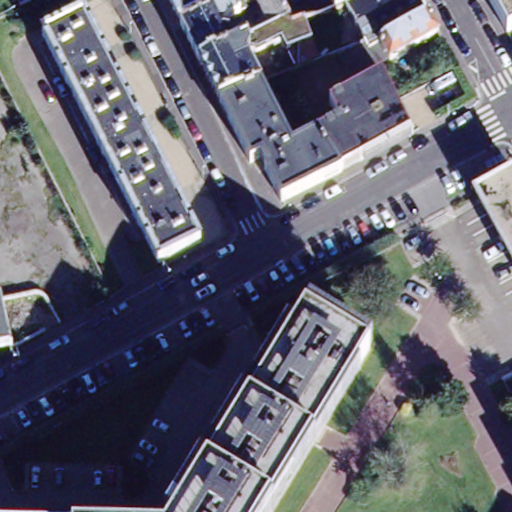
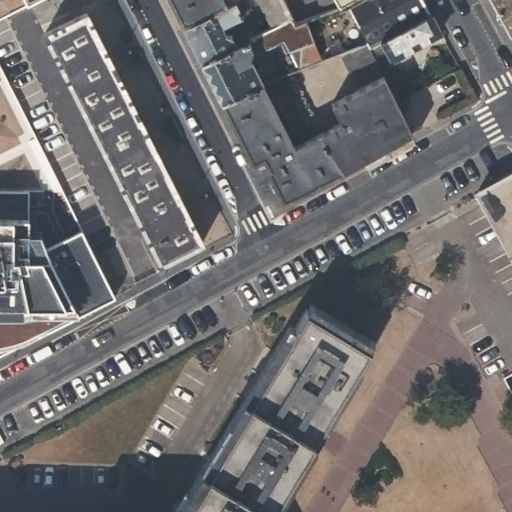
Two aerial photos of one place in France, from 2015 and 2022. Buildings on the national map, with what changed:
new [(8,3),(2,0),(44,0),(35,4),(8,3)]
demolished [(27,10),(22,0),(47,0),(27,10)]
unchanged [(229,1),(225,3),(187,22),(176,0),(229,0),(229,1)]
unchanged [(225,100),(205,59),(187,22),(225,3),(229,1),(229,0),(247,0),(249,5),(244,8),(245,11),(224,21),(229,29),(233,29),(239,42),(249,37),(255,35),(259,32),(268,28),(276,24),(263,0),(289,0),(296,14),(300,22),(308,19),(315,35),(308,39),(304,41),(313,63),(304,67),(293,47),(292,47),(286,37),(263,49),(255,48),(252,55),(265,82),(225,100)]
unchanged [(351,2),(345,4),(343,0),(355,0),(351,2)]
unchanged [(434,11),(386,38),(373,46),(371,41),(351,2),(355,0),(428,0),(434,11)]
unchanged [(509,36),(489,0),(512,0),(512,34),(509,36)]
unchanged [(444,30),(396,57),(386,38),(434,11),(444,30)]
unchanged [(48,36),(90,15),(206,243),(164,266),(48,36)]
unchanged [(400,100),(416,131),(347,169),(323,131),(344,120),(334,102),(361,87),(343,52),(371,41),(373,46),(400,100)]
new [(0,358),(0,50),(118,303),(0,358)]
unchanged [(297,144),(323,131),(347,169),(287,199),(265,155),(255,159),(225,100),(265,82),(297,144)]
unchanged [(512,174),(512,260),(475,194),(512,174)]
demolished [(17,349),(0,353),(0,301),(6,299),(17,349)]
unchanged [(248,406),(268,375),(307,312),(369,353),(322,427),(312,444),(270,512),(182,512),(213,462),(248,406)]

